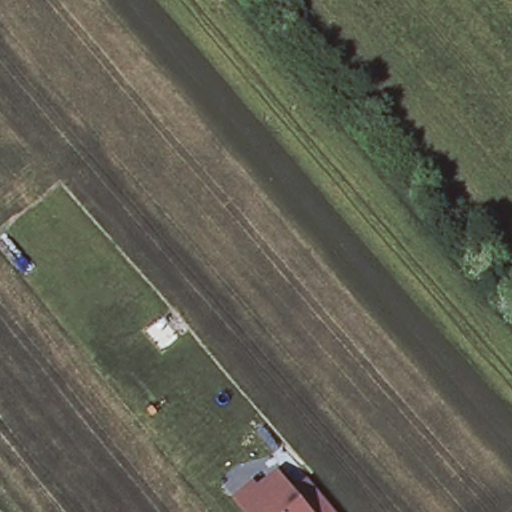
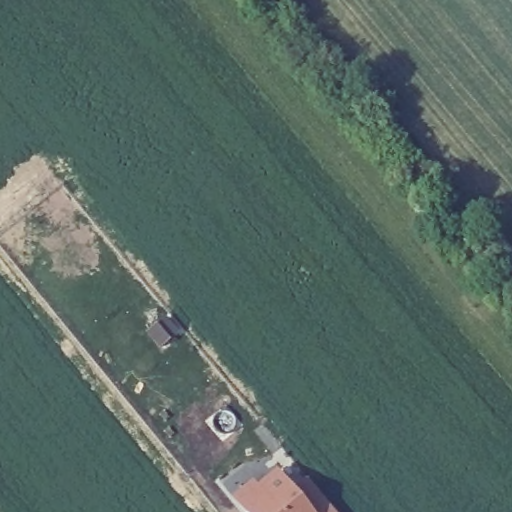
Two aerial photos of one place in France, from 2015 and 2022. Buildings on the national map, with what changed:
unchanged [(254,476),(262,486),(280,471),(292,487),(310,474),(339,512),(246,512),(231,493),(254,476)]

